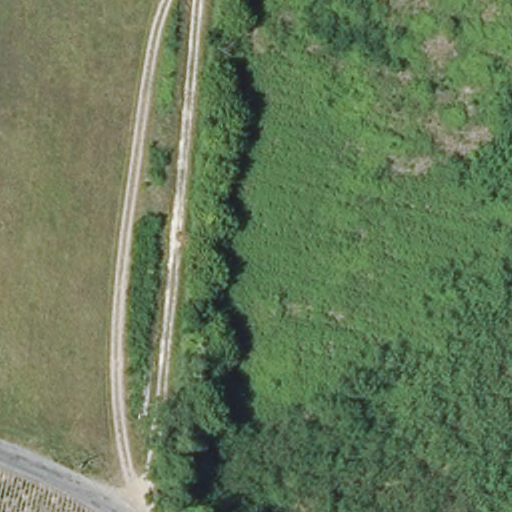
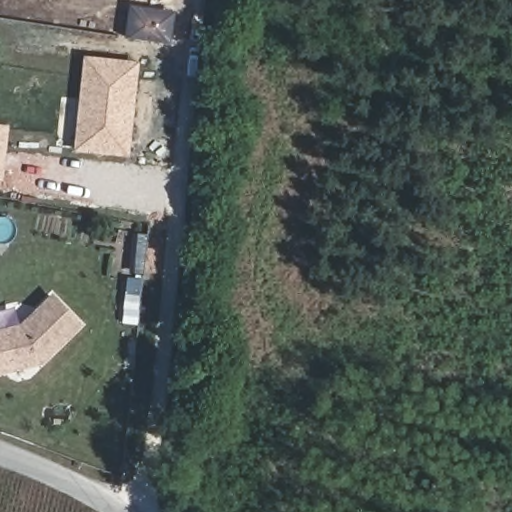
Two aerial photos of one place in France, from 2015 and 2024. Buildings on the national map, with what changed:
new [(129,6),(175,12),(170,43),(124,38),(129,6)]
new [(84,55),(138,62),(127,158),(72,153),(84,55)]
new [(4,181),(0,181),(0,126),(9,126),(4,181)]
new [(41,365),(0,375),(0,328),(20,322),(51,291),(84,324),(41,365)]

